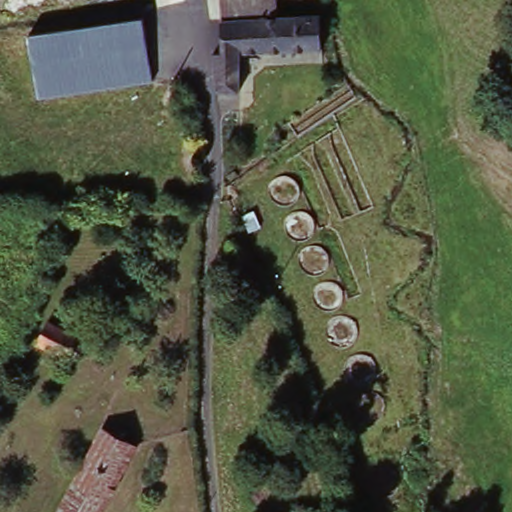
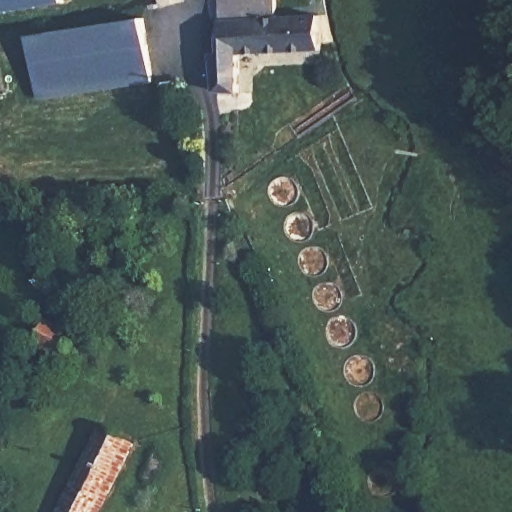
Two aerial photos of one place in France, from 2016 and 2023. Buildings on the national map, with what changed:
new [(0,13),(0,0),(63,0),(63,2),(0,13)]
unchanged [(325,16),(323,49),(243,54),(245,92),(223,92),(222,56),(232,57),(228,0),(282,0),(283,19),(325,16)]
unchanged [(37,98),(29,35),(143,19),(150,82),(37,98)]
unchanged [(78,360),(65,353),(64,358),(33,343),(45,321),(74,335),(87,342),(78,360)]
unchanged [(104,426),(138,443),(102,512),(58,512),(104,426)]

